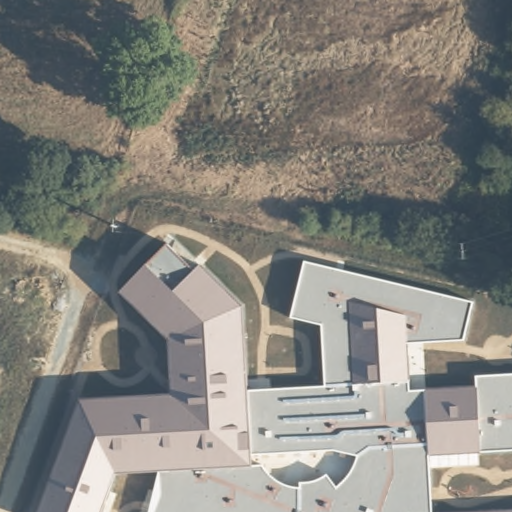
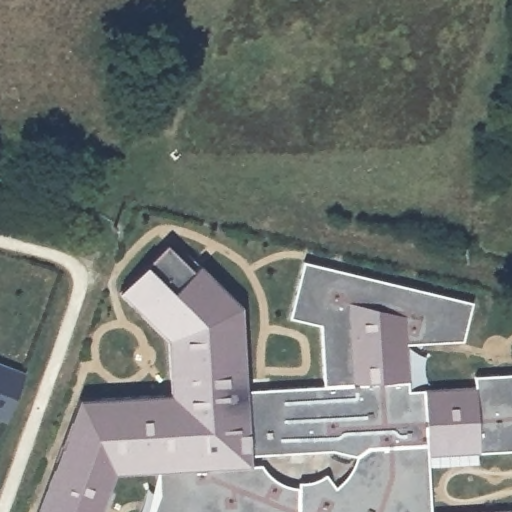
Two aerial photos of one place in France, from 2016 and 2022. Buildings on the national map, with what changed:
unchanged [(169,393),(166,340),(120,293),(167,242),(245,307),(248,391),(325,386),(321,324),(292,316),(305,261),(471,301),(463,340),(405,342),(408,390),(475,387),(475,376),(512,374),(512,450),(427,454),(431,512),(146,512),(154,470),(115,474),(101,512),(38,512),(78,399),(169,393)]
new [(6,421),(0,419),(0,363),(25,373),(6,421)]
unchanged [(472,512),(512,510),(512,512),(472,512)]

